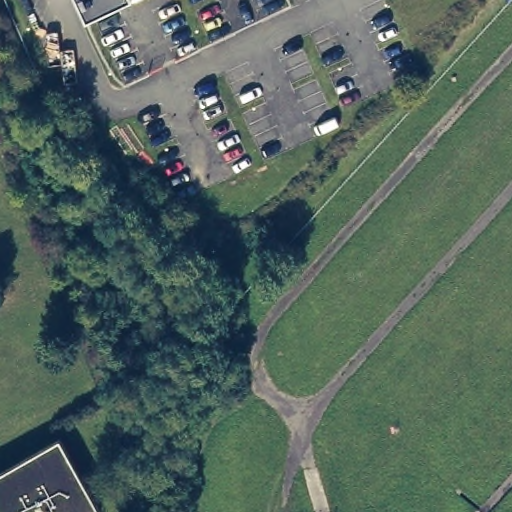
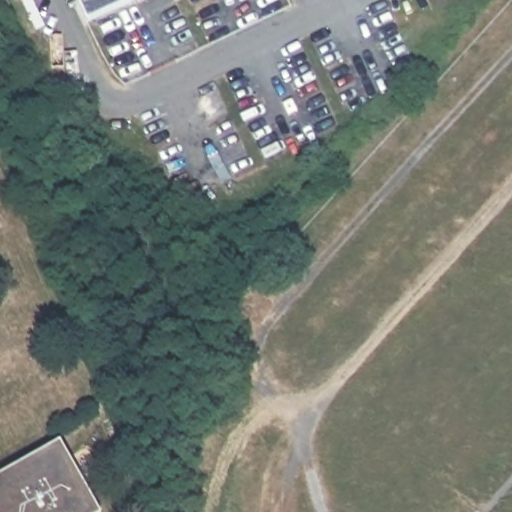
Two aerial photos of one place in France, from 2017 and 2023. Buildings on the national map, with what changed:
unchanged [(133,0),(87,21),(77,0),(132,0),(133,0)]
unchanged [(60,440),(99,512),(0,512),(0,474),(60,440)]

